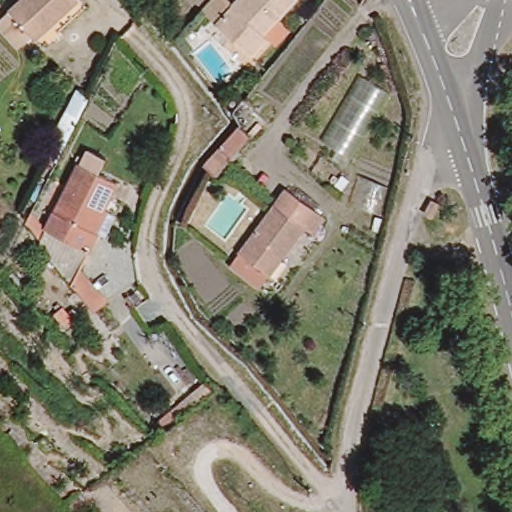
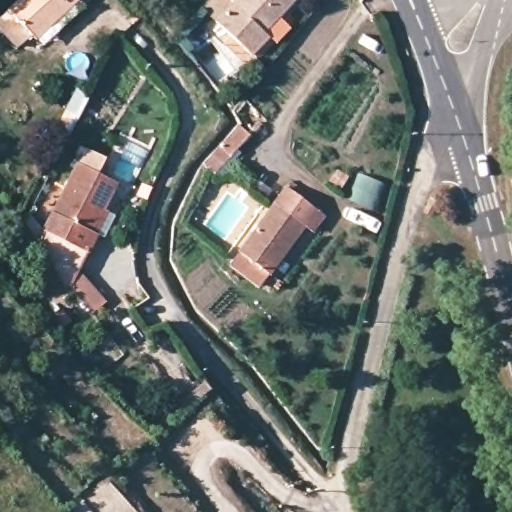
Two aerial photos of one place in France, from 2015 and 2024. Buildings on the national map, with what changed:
unchanged [(23,36),(2,12),(15,0),(70,0),(71,1),(49,22),(27,41),(23,36)]
unchanged [(294,4),(259,40),(262,43),(242,62),(209,25),(195,11),(207,0),(220,0),(227,8),(235,0),(291,0),(294,4)]
unchanged [(251,135),(213,176),(202,165),(239,125),(251,135)]
unchanged [(77,172),(109,189),(114,191),(84,249),(47,230),(77,172)]
unchanged [(232,252),(271,203),(282,189),(320,220),(307,235),(300,228),(260,277),(232,252)]
unchanged [(77,268),(97,290),(86,304),(69,287),(37,242),(22,226),(27,215),(47,230),(84,249),(77,268)]

